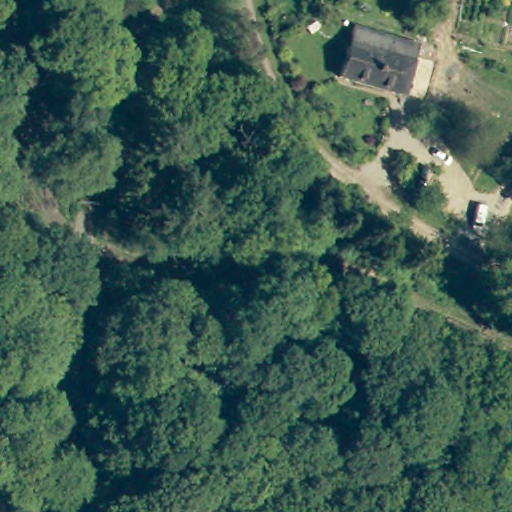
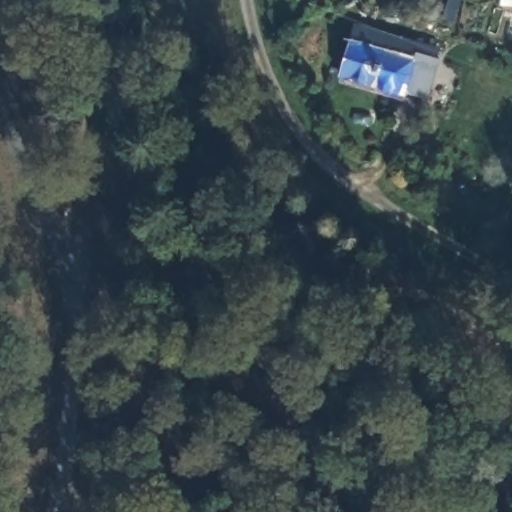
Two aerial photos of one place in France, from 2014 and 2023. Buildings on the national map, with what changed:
unchanged [(410,80),(408,83),(345,64),(360,19),(424,36),(421,48),(443,53),(434,85),(410,80)]

